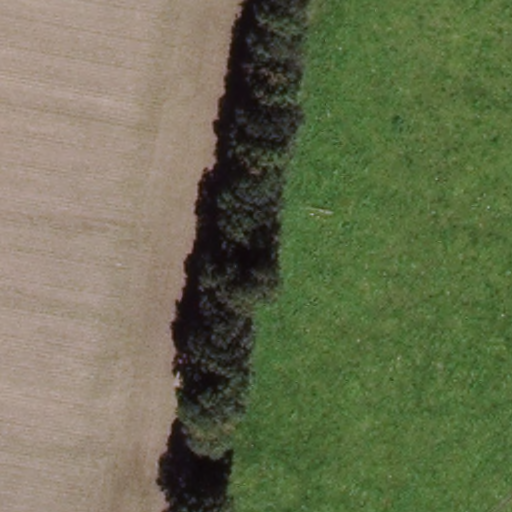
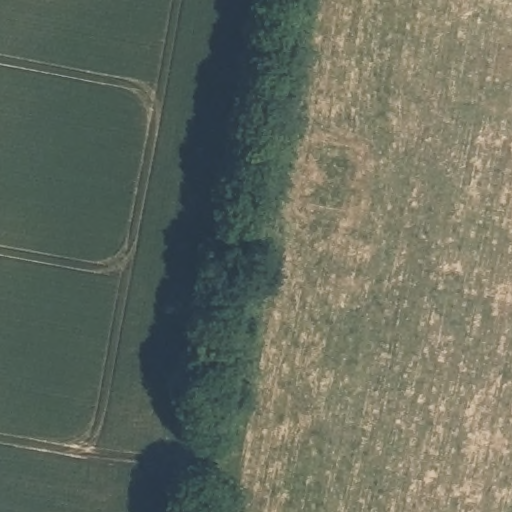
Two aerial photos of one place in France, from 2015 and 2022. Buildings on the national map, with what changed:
[]

